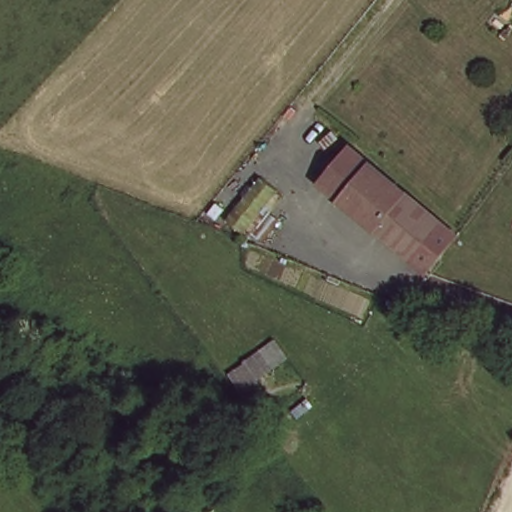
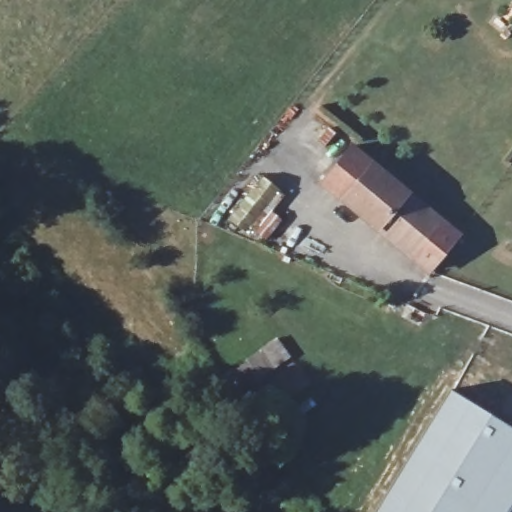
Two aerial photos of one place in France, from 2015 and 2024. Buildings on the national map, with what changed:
unchanged [(462,234),(432,272),(323,185),(353,147),(462,234)]
unchanged [(264,171),(286,188),(273,206),(284,218),(265,240),(253,227),(245,235),(230,218),(264,171)]
new [(496,512),(399,512),(371,494),(449,374),(512,414),(512,485),(496,512)]

